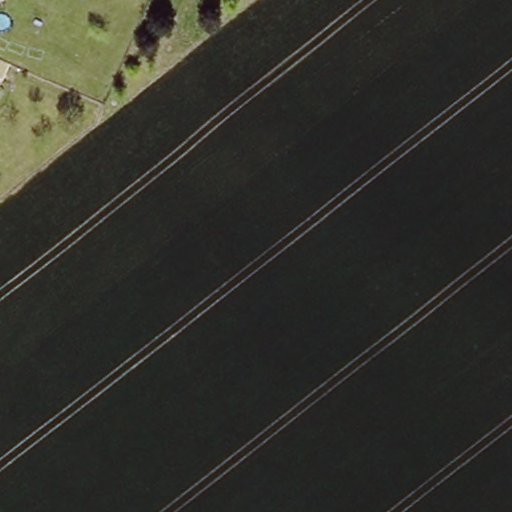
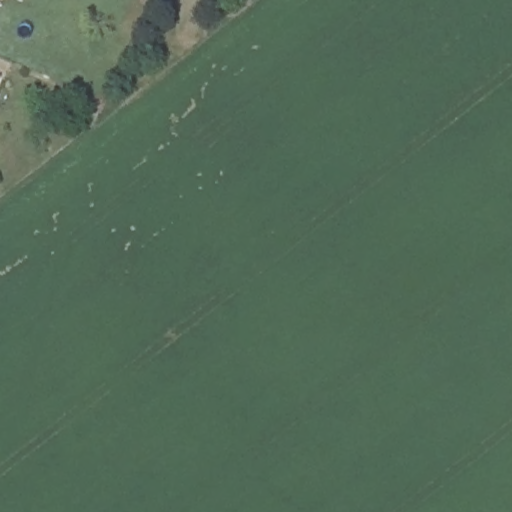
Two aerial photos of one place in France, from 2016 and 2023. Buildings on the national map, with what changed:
unchanged [(0,82),(0,78),(2,79),(0,82)]

